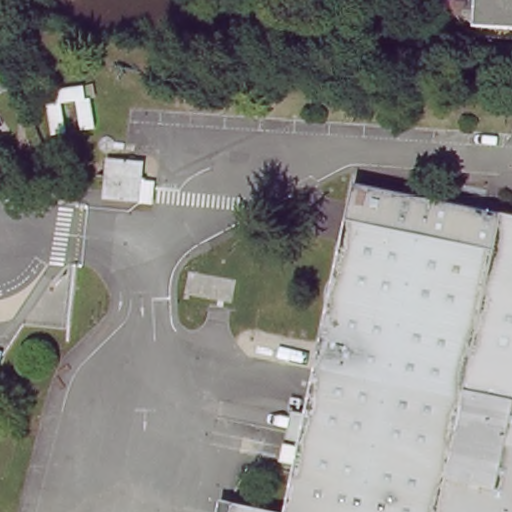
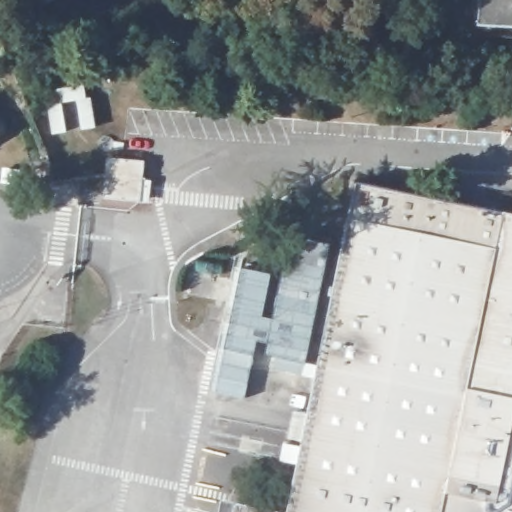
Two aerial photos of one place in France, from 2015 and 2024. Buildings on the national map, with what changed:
unchanged [(479,0),(512,0),(512,27),(478,25),(479,0)]
unchanged [(4,134),(0,137),(0,129),(4,134)]
unchanged [(107,193),(110,156),(144,160),(140,191),(139,199),(107,195),(107,193)]
unchanged [(232,495),(285,505),(329,298),(343,231),(355,177),(512,210),(512,512),(228,512),(232,495)]
new [(222,351),(239,267),(282,276),(290,236),(340,246),(329,298),(315,365),(222,351)]

